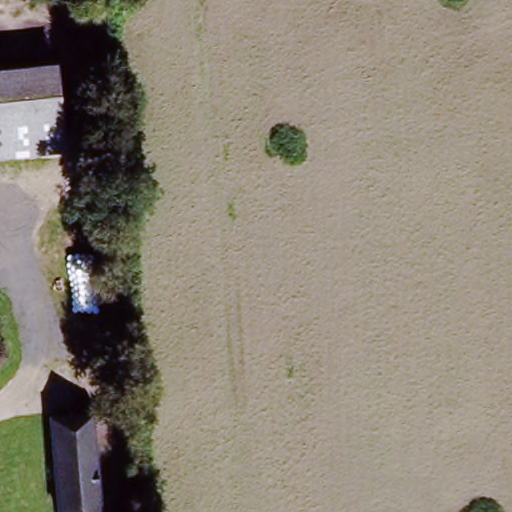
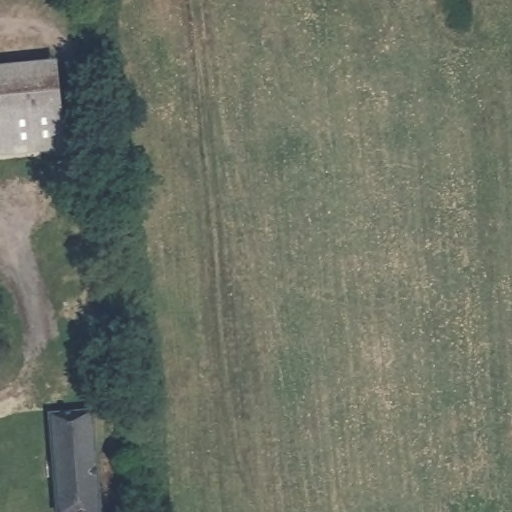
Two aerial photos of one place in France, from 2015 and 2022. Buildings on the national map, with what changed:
unchanged [(0,160),(0,71),(57,67),(62,156),(0,160)]
unchanged [(56,512),(50,440),(91,436),(98,512),(56,512)]

